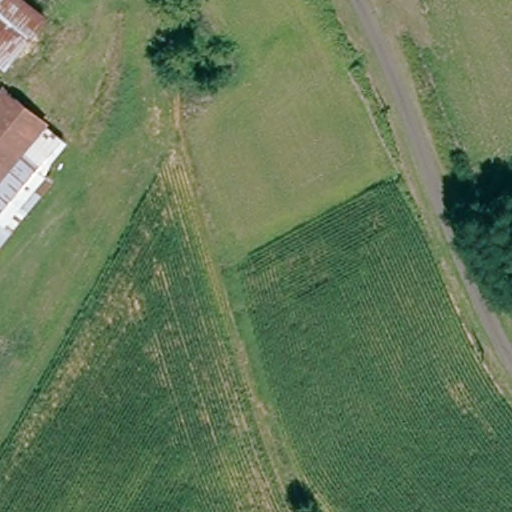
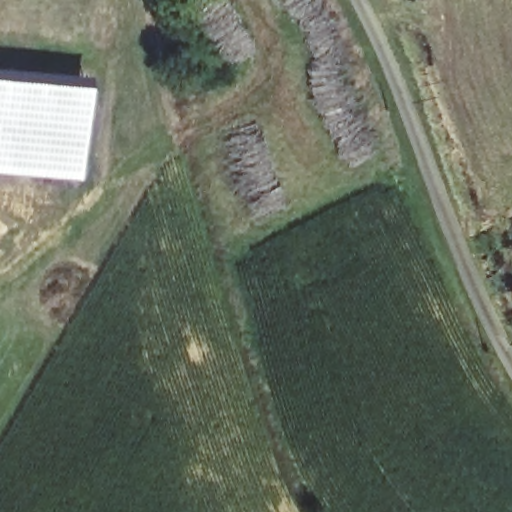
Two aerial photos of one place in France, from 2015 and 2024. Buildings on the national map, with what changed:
demolished [(31,0),(41,9),(0,57),(0,0),(31,0)]
new [(87,76),(79,180),(0,173),(0,69),(87,76)]
demolished [(1,87),(66,143),(44,176),(52,184),(0,245),(0,88),(1,87)]

